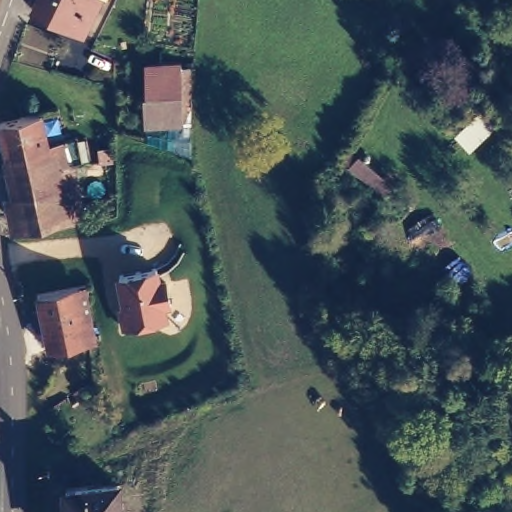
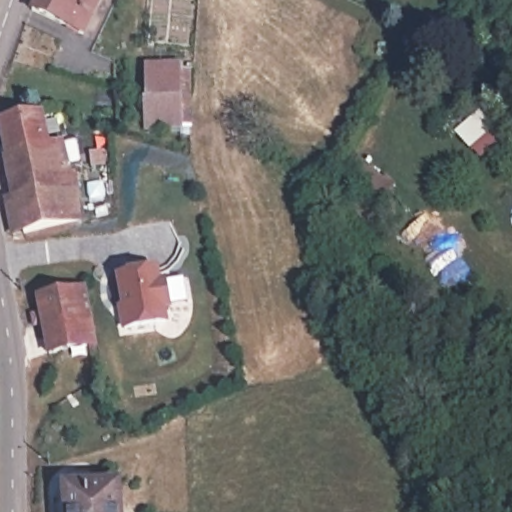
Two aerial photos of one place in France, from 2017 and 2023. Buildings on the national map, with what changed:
unchanged [(35,0),(98,0),(77,43),(27,19),(35,0)]
unchanged [(146,128),(145,98),(145,68),(179,69),(180,95),(181,125),(146,128)]
unchanged [(72,225),(19,238),(0,150),(0,126),(36,119),(43,149),(59,145),(68,190),(75,224),(72,225)]
unchanged [(350,169),(359,158),(383,178),(374,189),(350,169)]
unchanged [(162,279),(168,279),(173,309),(168,309),(169,322),(122,329),(118,304),(122,304),(118,276),(160,267),(162,279)]
unchanged [(43,329),(34,330),(32,319),(40,317),(37,300),(78,293),(85,291),(93,329),(96,349),(86,350),(71,353),(49,358),(43,329)]
unchanged [(61,494),(113,490),(114,512),(62,512),(61,494)]

